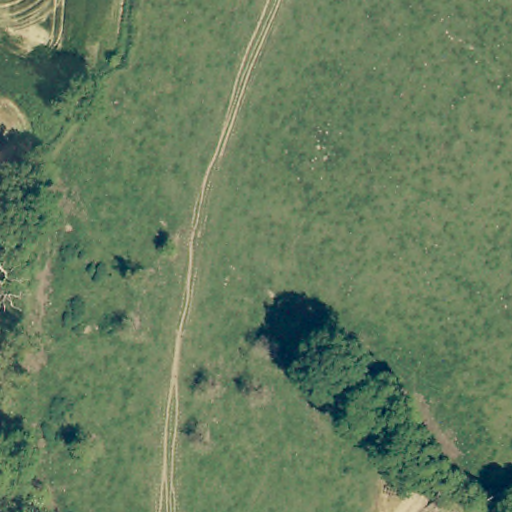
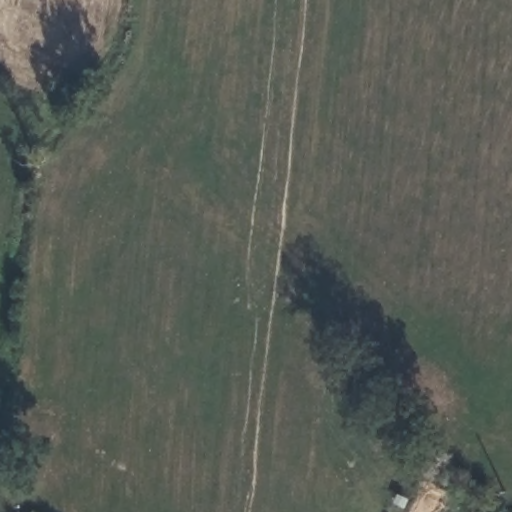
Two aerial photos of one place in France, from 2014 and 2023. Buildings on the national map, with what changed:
[]

